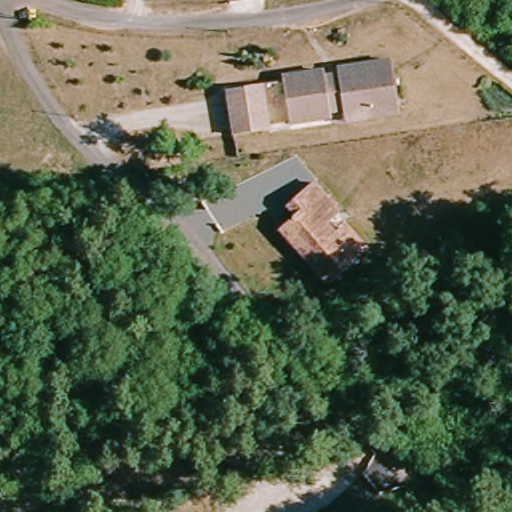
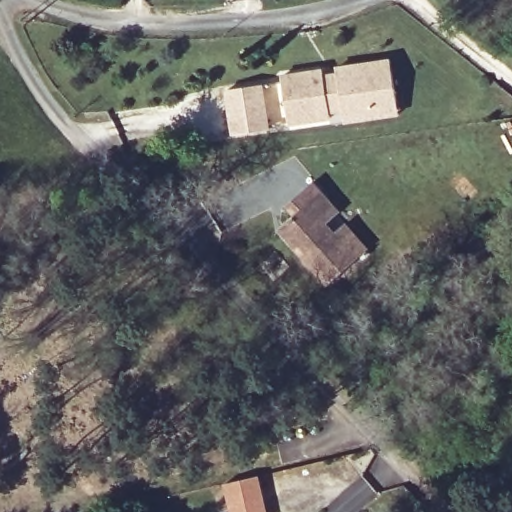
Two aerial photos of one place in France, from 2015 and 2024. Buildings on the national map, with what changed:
unchanged [(344,114),(344,108),(329,110),(329,115),(289,121),(283,73),(324,68),(324,74),(339,72),(338,66),(392,59),(394,70),(398,100),(399,111),(345,119),(344,114)]
unchanged [(264,86),(271,130),(232,136),(227,92),(264,86)]
unchanged [(368,250),(358,259),(328,286),(304,258),(279,230),(292,218),(296,215),(288,205),(299,195),(313,183),(339,212),(327,224),(335,233),(347,224),(368,250)]
new [(267,512),(228,512),(222,484),(259,475),(267,512)]

